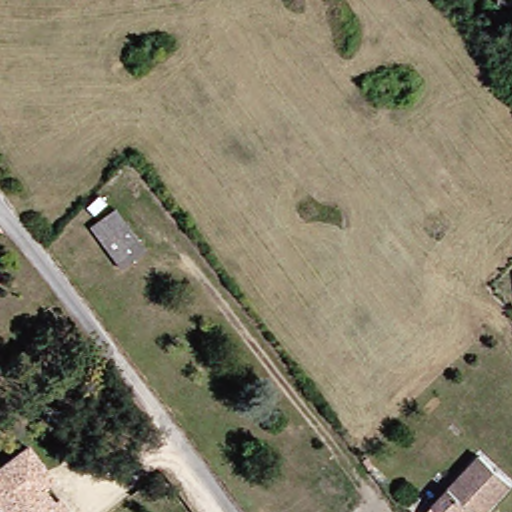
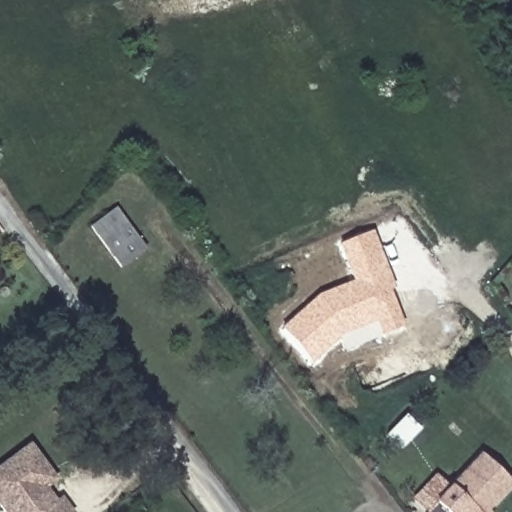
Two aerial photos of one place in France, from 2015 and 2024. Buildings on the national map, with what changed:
unchanged [(149,250),(123,268),(96,230),(122,211),(149,250)]
new [(394,290),(388,292),(402,330),(379,338),(374,323),(337,337),(308,363),(279,330),(317,295),(350,283),(334,246),(370,232),(394,290)]
unchanged [(0,468),(27,448),(47,475),(52,482),(42,490),(53,505),(59,501),(66,512),(2,512),(0,510),(0,468)]
unchanged [(435,503),(482,455),(512,485),(512,486),(487,511),(488,512),(444,512),(435,503)]

